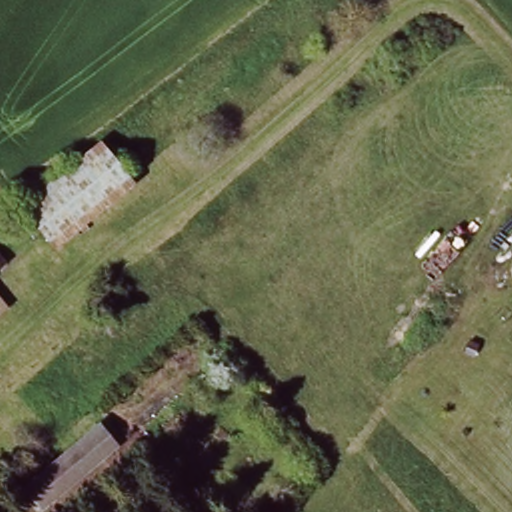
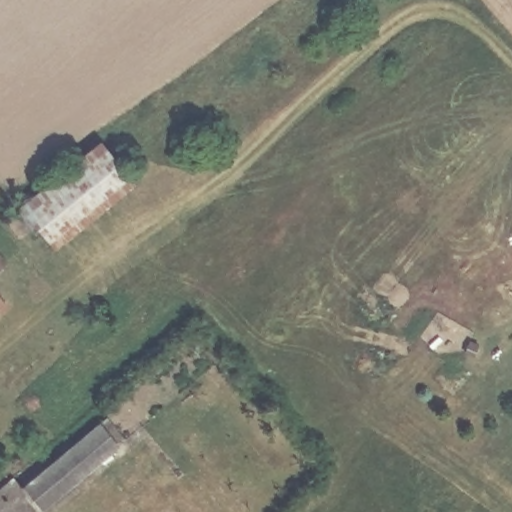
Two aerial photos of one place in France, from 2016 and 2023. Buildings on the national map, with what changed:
unchanged [(97,141),(130,177),(127,179),(48,242),(18,205),(97,141)]
unchanged [(0,269),(0,254),(7,263),(0,269)]
unchanged [(0,311),(0,301),(5,306),(0,311)]
unchanged [(212,343),(222,355),(209,366),(200,355),(212,343)]
unchanged [(104,417),(122,436),(45,502),(28,482),(104,417)]

